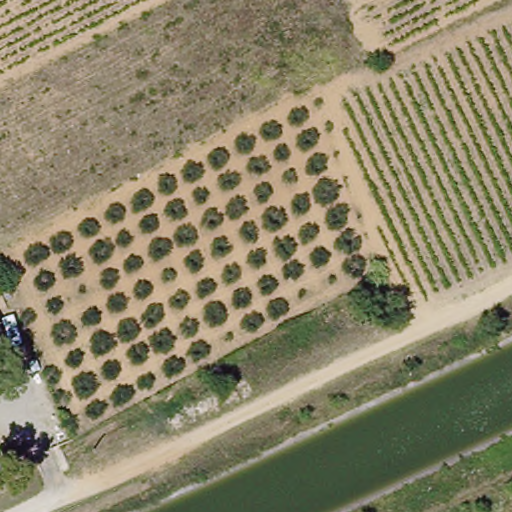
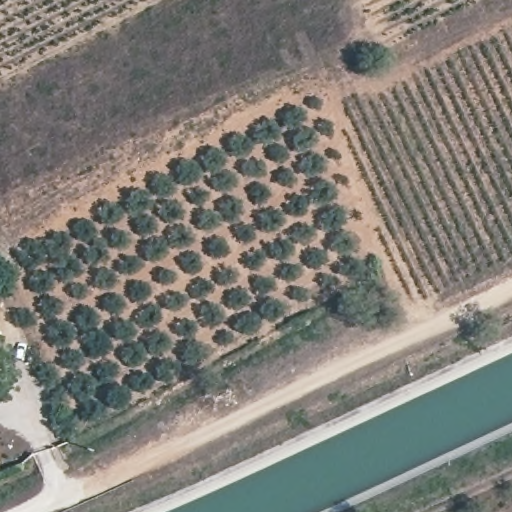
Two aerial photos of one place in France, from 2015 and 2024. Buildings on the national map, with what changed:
unchanged [(0,353),(0,314),(13,347),(0,353)]

